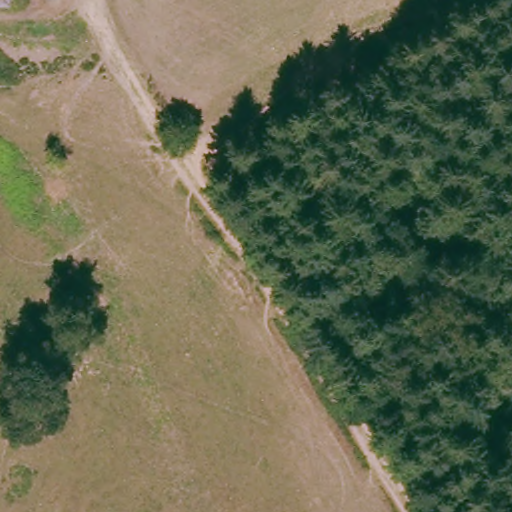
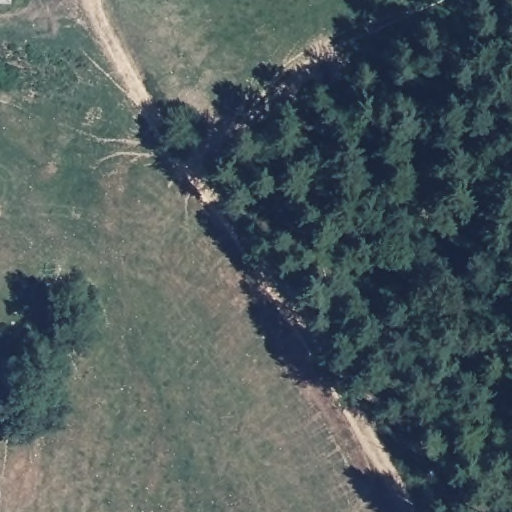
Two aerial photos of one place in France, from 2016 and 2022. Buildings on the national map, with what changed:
unchanged [(0,8),(0,0),(9,0),(9,8),(0,8)]

